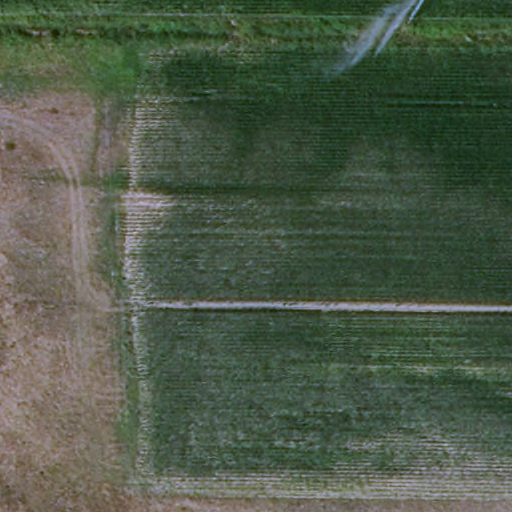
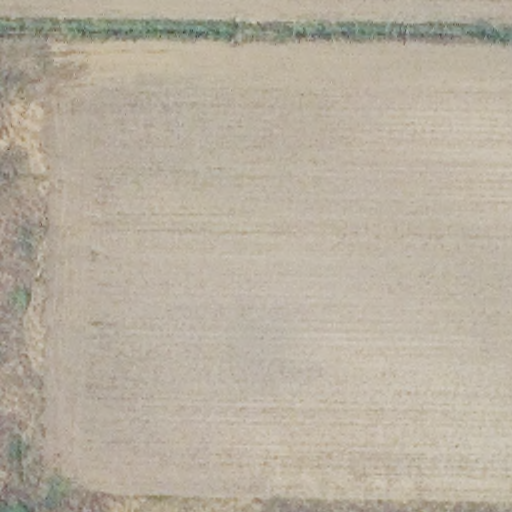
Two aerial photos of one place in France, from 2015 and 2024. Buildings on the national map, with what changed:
[]

